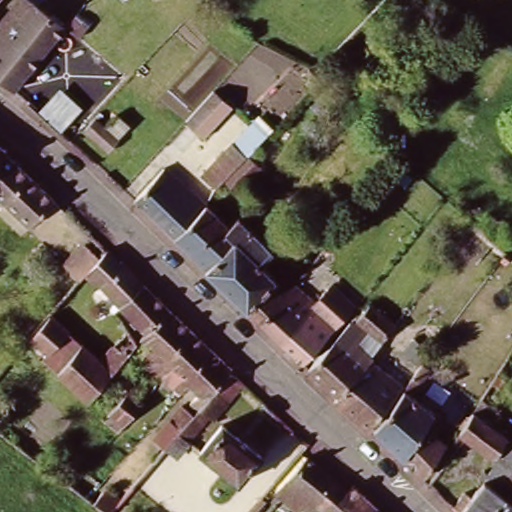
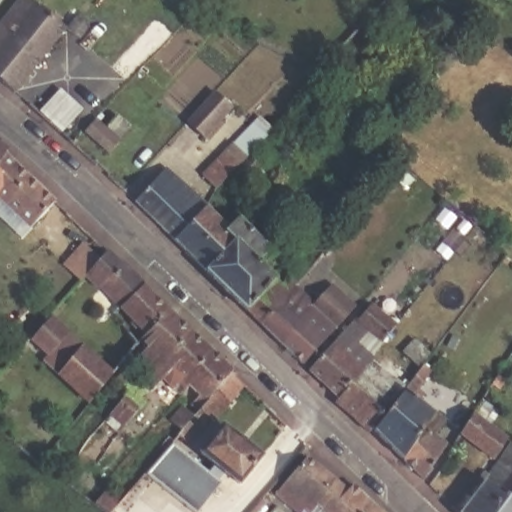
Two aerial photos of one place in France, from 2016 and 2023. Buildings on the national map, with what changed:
unchanged [(36,0),(65,26),(15,88),(0,77),(0,17),(14,0),(36,0)]
unchanged [(25,106),(40,88),(66,112),(61,117),(78,133),(65,145),(49,129),(25,106)]
unchanged [(231,111),(203,140),(186,122),(204,104),(214,94),(231,111)]
unchanged [(225,155),(238,168),(242,164),(229,150),(238,141),(243,136),(248,141),(256,150),(261,147),(250,136),(269,117),(279,129),(278,130),(263,144),(270,151),(265,157),(271,162),(254,180),(248,187),(233,172),(226,180),(225,179),(213,167),(225,155)]
unchanged [(89,122),(114,145),(104,155),(79,132),(89,122)]
unchanged [(14,155),(0,172),(0,140),(16,152),(14,155)]
unchanged [(39,180),(11,213),(0,204),(0,172),(14,155),(39,180)]
unchanged [(128,201),(160,167),(199,206),(168,240),(128,201)]
unchanged [(28,229),(11,213),(39,180),(64,203),(59,209),(40,231),(36,236),(28,229)]
unchanged [(224,231),(233,240),(202,272),(168,240),(199,206),(224,231)]
unchanged [(236,219),(258,239),(261,236),(277,250),(271,257),(276,261),(266,272),(251,258),(223,292),(202,272),(233,240),(224,231),(236,219)]
unchanged [(81,276),(63,262),(83,241),(99,254),(81,276)]
unchanged [(105,320),(91,306),(103,295),(97,289),(96,290),(81,276),(102,251),(118,267),(120,265),(139,282),(118,307),(113,312),(109,316),(105,320)]
unchanged [(296,311),(301,316),(276,342),(256,322),(242,310),(223,292),(251,258),(266,272),(272,277),(268,282),(272,287),(286,271),(296,280),(293,282),(309,297),(296,311)]
unchanged [(341,281),(336,286),(330,280),(334,275),(341,281)]
unchanged [(113,312),(118,307),(139,282),(166,308),(138,337),(113,312)]
unchanged [(312,303),(331,282),(357,305),(334,332),(329,328),(343,313),(298,362),(276,342),(301,316),(312,303)]
unchanged [(364,352),(350,341),(355,335),(346,327),(341,333),(340,332),(371,301),(397,325),(370,357),(364,352)]
unchanged [(191,332),(188,337),(164,366),(168,367),(161,377),(136,357),(144,347),(138,341),(136,339),(138,337),(166,308),(191,332)]
unchanged [(143,401),(123,429),(108,418),(121,400),(106,386),(91,403),(58,376),(60,372),(28,340),(53,314),(98,359),(126,325),(138,337),(136,339),(138,341),(123,364),(143,381),(134,394),(143,401)]
unchanged [(307,372),(340,332),(341,333),(346,327),(355,335),(350,341),(370,357),(336,399),(307,372)]
unchanged [(179,391),(170,384),(177,374),(168,367),(164,366),(188,337),(191,332),(211,352),(185,383),(179,391)]
unchanged [(399,357),(410,341),(429,353),(417,371),(399,357)]
unchanged [(188,397),(193,391),(185,383),(211,352),(231,371),(228,375),(200,407),(188,397)]
unchanged [(386,371),(394,361),(407,372),(399,382),(402,385),(366,428),(364,432),(333,404),(336,399),(370,357),(386,371)]
unchanged [(509,372),(502,382),(494,376),(501,366),(509,372)]
unchanged [(183,400),(196,412),(200,407),(228,375),(241,386),(212,420),(206,415),(183,442),(176,435),(184,425),(171,413),(183,400)]
unchanged [(406,390),(414,396),(435,410),(399,460),(373,435),(406,390)]
unchanged [(465,428),(459,438),(452,433),(471,407),(474,403),(509,429),(494,451),(465,428)]
unchanged [(435,410),(444,416),(431,433),(444,442),(421,481),(399,460),(435,410)]
unchanged [(219,423),(256,456),(249,463),(233,483),(195,452),(219,423)]
unchanged [(156,446),(166,435),(171,440),(161,451),(156,446)]
unchanged [(498,468),(504,460),(499,457),(512,438),(512,491),(503,485),(509,476),(498,468)]
new [(147,473),(173,442),(208,471),(212,466),(221,474),(218,480),(221,482),(197,512),(196,512),(147,473)]
unchanged [(318,511),(317,512),(295,512),(274,493),(308,455),(335,477),(341,482),(348,487),(354,481),(361,488),(372,498),(374,500),(364,512),(319,512),(318,511)]
unchanged [(485,463),(491,467),(487,473),(481,469),(485,463)]
unchanged [(456,502),(461,497),(467,501),(487,473),(503,485),(512,491),(512,512),(466,512),(456,502)]
unchanged [(90,500),(108,478),(123,490),(104,511),(90,500)]
unchanged [(374,500),(387,512),(364,512),(374,500)]

